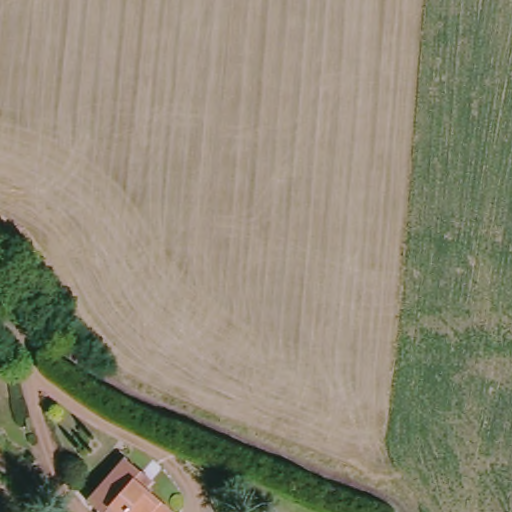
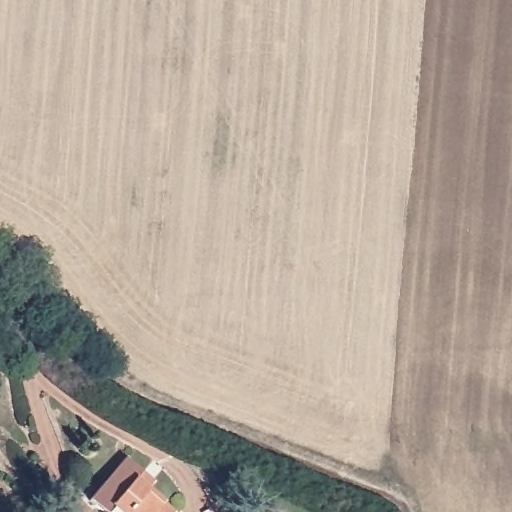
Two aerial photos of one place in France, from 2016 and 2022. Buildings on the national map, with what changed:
unchanged [(92,502),(130,457),(147,472),(160,484),(153,491),(168,502),(178,512),(101,512),(92,502)]

